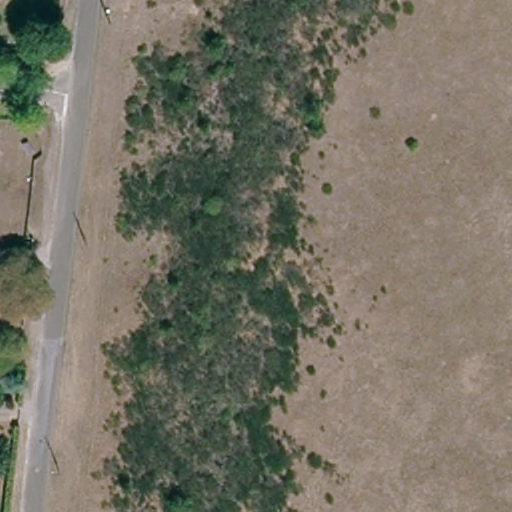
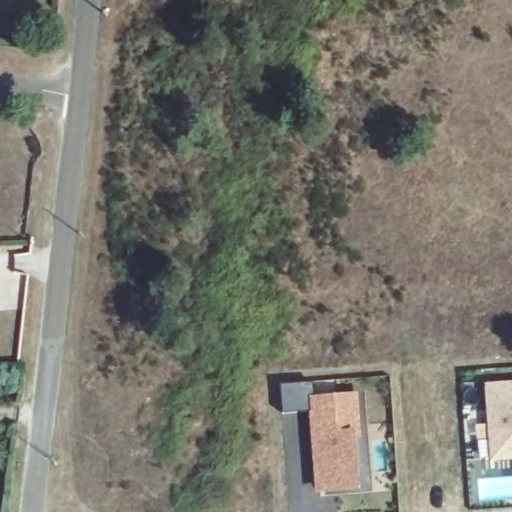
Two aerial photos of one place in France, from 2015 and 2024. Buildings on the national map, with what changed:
new [(512,460),(491,462),(485,383),(512,382),(512,460)]
new [(315,383),(315,395),(364,392),(368,427),(358,428),(362,491),(316,493),(309,412),(284,414),(282,385),(315,383)]

